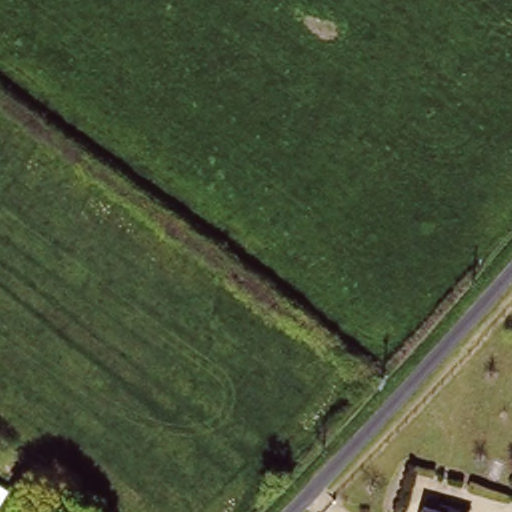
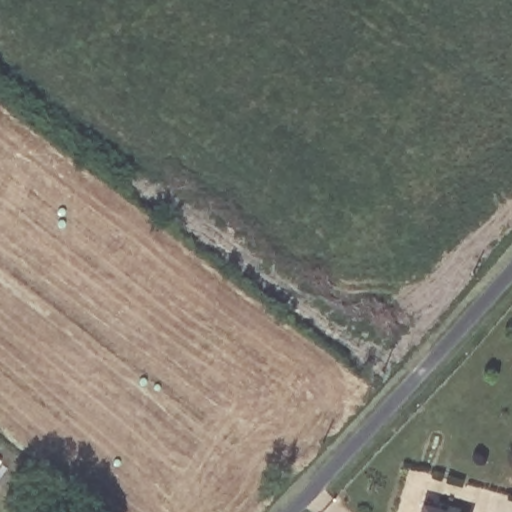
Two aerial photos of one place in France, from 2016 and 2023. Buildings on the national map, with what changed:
unchanged [(450,512),(425,512),(427,505),(450,512)]

